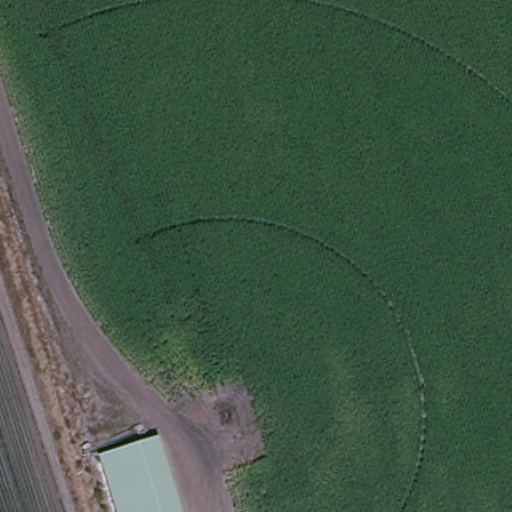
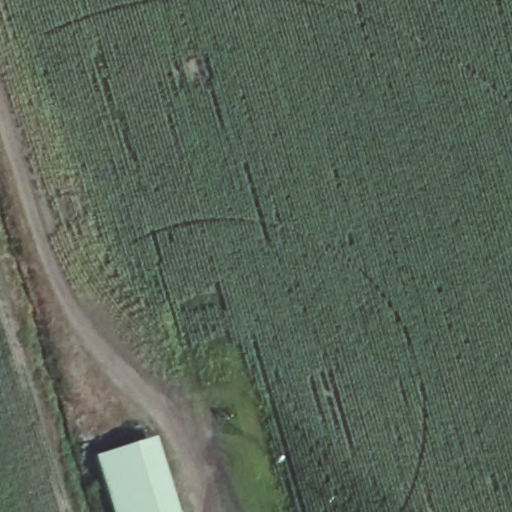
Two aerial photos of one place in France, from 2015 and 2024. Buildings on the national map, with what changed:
unchanged [(185,512),(114,512),(96,456),(163,432),(185,512)]

